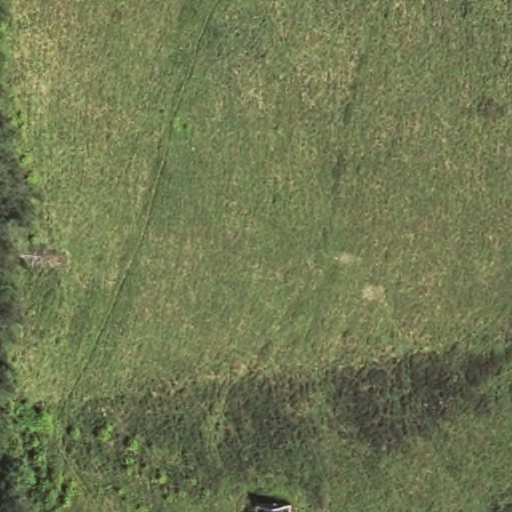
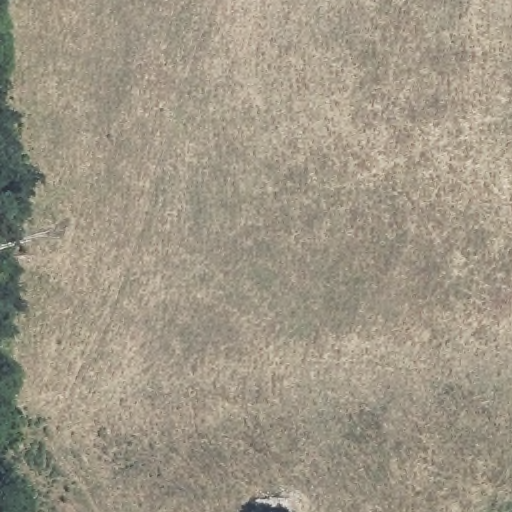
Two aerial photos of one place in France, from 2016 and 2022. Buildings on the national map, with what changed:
unchanged [(263,498),(301,498),(301,512),(263,512),(263,498)]

